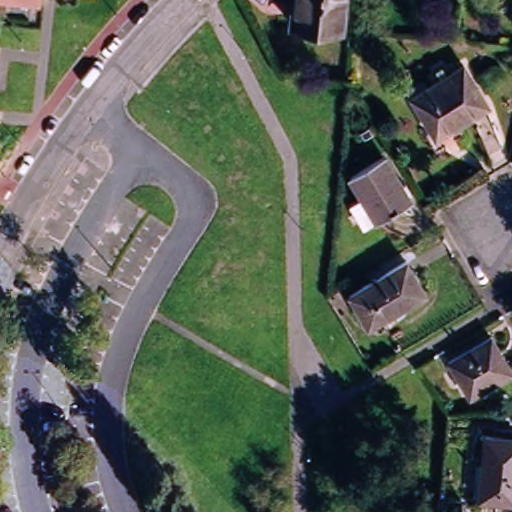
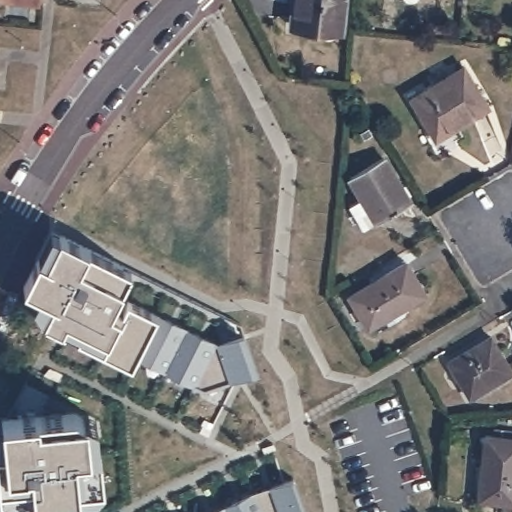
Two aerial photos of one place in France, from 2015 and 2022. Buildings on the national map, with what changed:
unchanged [(7,2),(0,1),(0,0),(7,0),(7,2)]
unchanged [(38,5),(7,2),(7,0),(39,0),(38,5)]
unchanged [(343,31),(297,26),(299,0),(347,0),(343,31)]
unchanged [(435,139),(410,98),(463,65),(488,107),(435,139)]
unchanged [(400,182),(403,180),(409,189),(406,192),(410,198),(377,218),(375,217),(362,224),(348,201),(361,193),(348,173),(382,152),(400,182)]
new [(192,298),(241,323),(257,369),(203,387),(135,353),(130,362),(43,318),(28,275),(51,229),(60,233),(192,298)]
unchanged [(377,332),(373,325),(368,328),(348,295),(405,261),(425,294),(390,314),(395,322),(377,332)]
unchanged [(470,397),(447,361),(490,335),(512,371),(512,372),(470,397)]
new [(43,373),(49,365),(64,373),(60,380),(43,373)]
new [(83,414),(85,411),(97,417),(103,482),(95,492),(8,501),(0,493),(0,421),(2,421),(2,417),(74,409),(83,414)]
unchanged [(510,508),(473,505),(480,439),(490,440),(491,433),(512,435),(512,494),(510,508)]
new [(208,512),(254,489),(295,475),(307,512),(208,512)]

